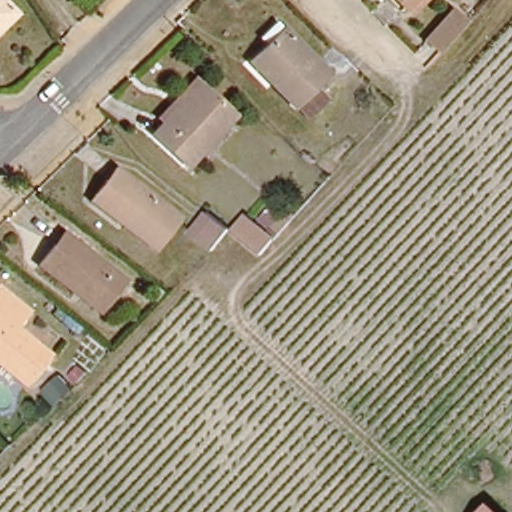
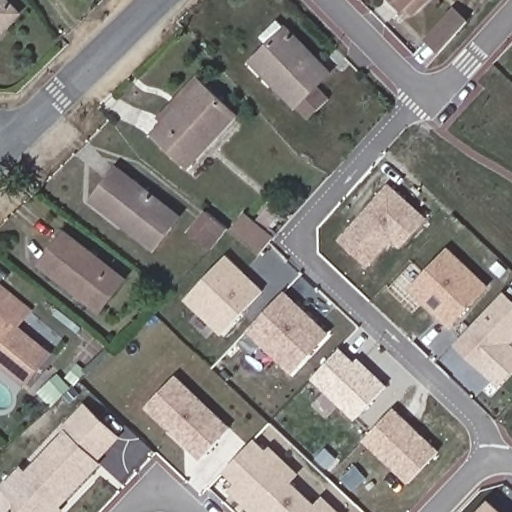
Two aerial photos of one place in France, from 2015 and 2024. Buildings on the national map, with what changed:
unchanged [(17,7),(0,25),(0,0),(10,0),(17,7)]
unchanged [(389,2),(387,0),(391,0),(389,2)]
unchanged [(409,5),(405,8),(399,0),(430,0),(416,13),(409,5)]
unchanged [(439,50),(425,36),(452,9),(465,20),(439,50)]
unchanged [(267,79),(252,62),(271,45),(264,37),(281,21),(288,29),(329,72),(315,85),(327,99),(311,115),(299,102),(294,107),(267,79)]
unchanged [(148,135),(158,125),(178,104),(198,83),(229,117),(181,166),(148,135)]
unchanged [(92,196),(112,169),(174,217),(150,247),(119,224),(122,220),(92,196)]
new [(422,216),(397,245),(388,236),(364,263),(336,238),(385,183),(422,216)]
unchanged [(252,246),(222,226),(238,211),(271,226),(252,246)]
unchanged [(71,294),(37,266),(65,231),(124,278),(100,308),(96,313),(71,294)]
new [(485,285),(447,325),(406,287),(445,247),(485,285)]
new [(258,290),(218,331),(180,295),(220,254),(258,290)]
unchanged [(16,330),(48,358),(23,386),(0,368),(0,290),(4,293),(29,314),(16,330)]
new [(323,332),(289,369),(245,327),(279,291),(323,332)]
new [(512,334),(505,341),(512,348),(512,365),(497,381),(453,340),(499,291),(512,304),(512,334)]
new [(355,365),(358,362),(383,385),(353,417),(309,376),(336,347),(355,365)]
new [(358,362),(355,365),(350,361),(354,357),(358,362)]
new [(215,437),(196,457),(140,405),(169,373),(214,415),(225,426),(215,437)]
new [(0,487),(17,470),(22,475),(61,432),(58,429),(80,405),(113,435),(91,459),(95,462),(50,512),(15,512),(14,500),(0,487)]
new [(435,450),(406,481),(361,438),(390,407),(435,450)]
new [(319,512),(253,512),(229,490),(235,482),(222,469),(249,440),(263,453),(259,456),(319,512)]
new [(292,473),(285,480),(273,470),(280,462),(292,473)]
unchanged [(503,512),(470,512),(485,496),(503,512)]
new [(320,499),(334,512),(319,512),(313,506),(320,499)]
new [(50,512),(55,506),(58,510),(56,512),(50,512)]

